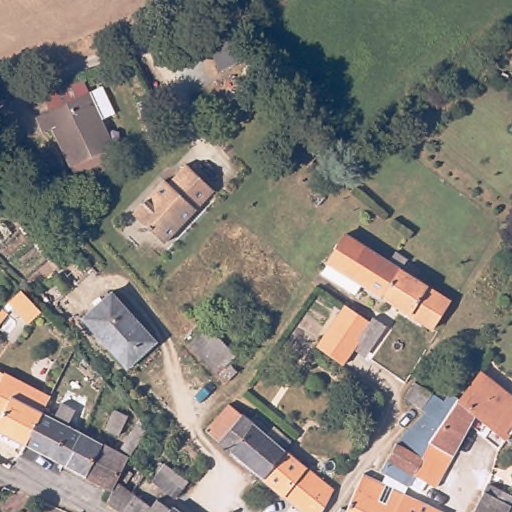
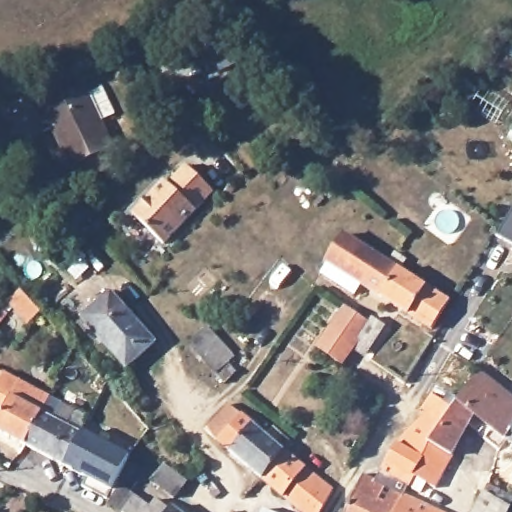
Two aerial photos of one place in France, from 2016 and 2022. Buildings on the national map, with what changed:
unchanged [(96,97),(111,92),(121,120),(106,125),(117,154),(115,154),(119,166),(122,172),(79,188),(78,184),(66,154),(70,152),(60,128),(48,132),(43,118),(96,97)]
unchanged [(191,164),(216,189),(177,228),(165,241),(135,211),(147,198),(167,178),(171,181),(189,163),(191,164)]
new [(512,210),(512,245),(496,236),(512,210)]
unchanged [(369,284),(363,294),(328,272),(353,233),(407,269),(388,296),(369,284)]
unchanged [(407,269),(457,302),(439,329),(388,296),(407,269)]
unchanged [(111,294),(153,342),(125,368),(82,320),(111,294)]
unchanged [(343,305),(362,318),(365,314),(383,327),(362,356),(350,349),(339,364),(314,345),(343,305)]
unchanged [(2,313),(17,324),(8,334),(0,328),(0,316),(2,313)]
unchanged [(205,326),(232,357),(227,362),(234,371),(221,382),(187,343),(205,326)]
unchanged [(47,413),(32,446),(0,429),(5,420),(0,417),(0,369),(10,375),(10,376),(24,383),(54,398),(47,413)]
unchanged [(412,397),(419,387),(422,381),(460,405),(465,397),(466,399),(487,372),(512,392),(512,435),(478,408),(475,413),(479,420),(471,435),(461,455),(444,486),(434,482),(429,491),(416,485),(388,471),(394,460),(403,444),(434,412),(412,397)]
unchanged [(103,381),(99,384),(95,379),(99,376),(103,381)]
unchanged [(231,402),(278,442),(285,435),(292,441),(286,449),(287,450),(264,477),(208,429),(231,402)]
unchanged [(47,413),(57,418),(64,405),(79,411),(71,425),(86,435),(69,466),(32,446),(47,413)]
unchanged [(117,412),(130,418),(122,436),(110,431),(117,412)]
unchanged [(86,435),(122,453),(143,422),(152,431),(138,450),(120,482),(116,490),(69,466),(86,435)]
unchanged [(287,450),(334,491),(323,512),(306,512),(264,477),(287,450)]
unchanged [(161,466),(189,483),(175,507),(173,510),(160,500),(154,507),(141,498),(161,466)]
unchanged [(348,508),(355,511),(371,474),(412,493),(405,512),(346,512),(348,508)]
unchanged [(512,493),(512,500),(508,506),(507,506),(504,512),(472,512),(482,493),(488,481),(512,493)]
unchanged [(116,490),(120,482),(141,498),(154,507),(160,500),(173,510),(175,507),(183,512),(125,512),(110,501),(116,490)]
unchanged [(412,493),(435,503),(453,512),(405,512),(412,493)]

